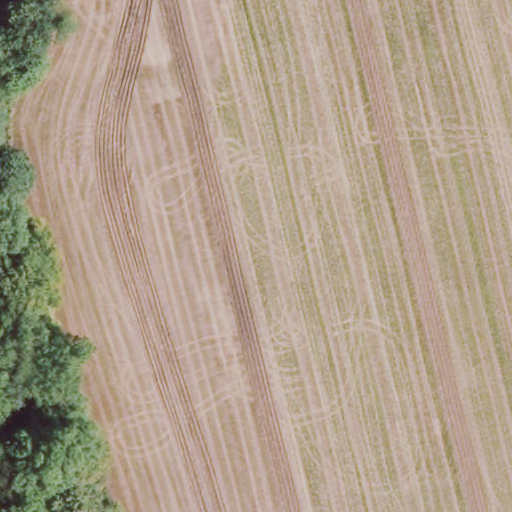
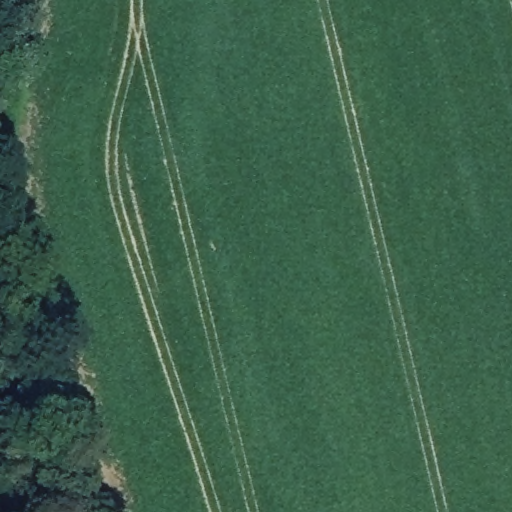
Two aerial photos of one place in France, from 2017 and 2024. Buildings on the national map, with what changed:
unchanged [(22,40),(20,41),(14,45),(5,42),(0,36),(0,33),(5,19),(13,10),(20,0),(45,0),(22,40)]

